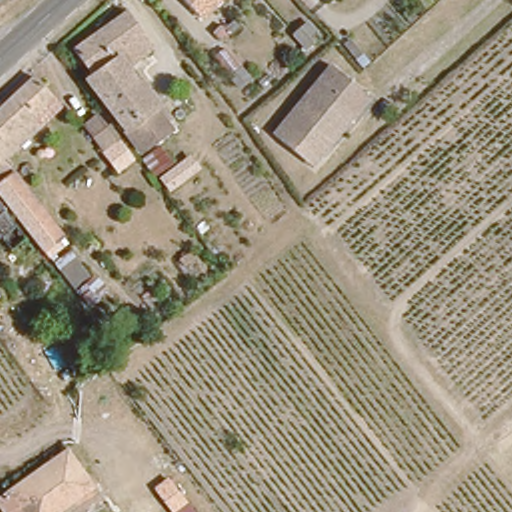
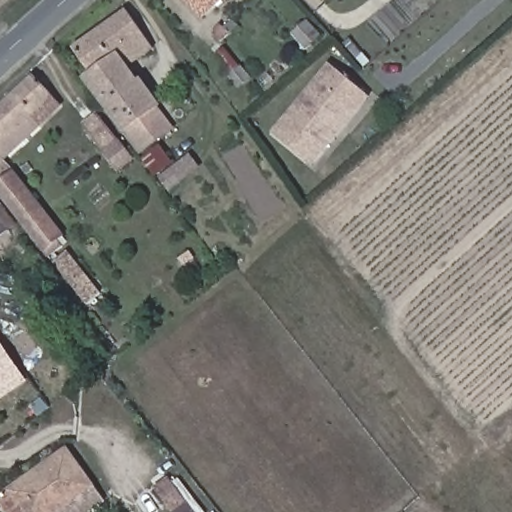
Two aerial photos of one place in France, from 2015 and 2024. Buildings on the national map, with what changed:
unchanged [(198,19),(182,0),(219,0),(198,19)]
unchanged [(156,48),(129,68),(176,129),(144,152),(97,92),(103,88),(82,60),(135,20),(156,48)]
unchanged [(319,47),(304,59),(292,45),(306,32),(319,47)]
unchanged [(51,94),(33,111),(43,122),(7,156),(30,184),(43,201),(20,218),(0,190),(0,105),(33,73),(51,94)]
unchanged [(310,180),(304,175),(270,148),(332,76),(365,103),(370,108),(310,180)]
unchanged [(247,94),(236,103),(226,88),(237,80),(247,94)]
unchanged [(113,139),(100,150),(81,126),(95,115),(113,139)]
unchanged [(92,275),(98,271),(110,288),(85,306),(52,258),(50,259),(20,218),(43,201),(92,275)]
unchanged [(2,207),(5,211),(0,215),(0,204),(2,207)]
new [(28,383),(0,402),(0,340),(28,383)]
unchanged [(67,447),(95,484),(58,511),(60,512),(10,512),(0,497),(0,495),(67,447)]
unchanged [(188,502),(174,512),(156,489),(170,479),(188,502)]

